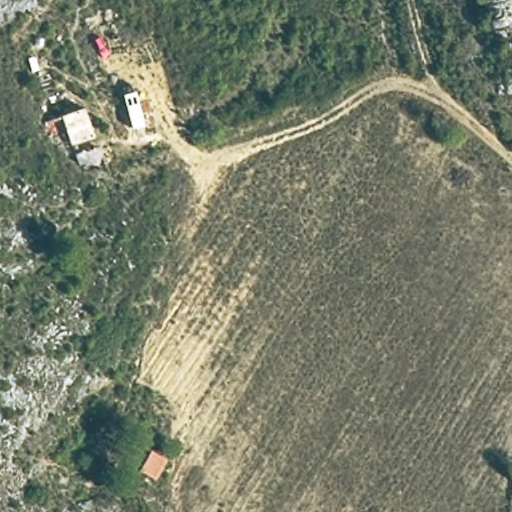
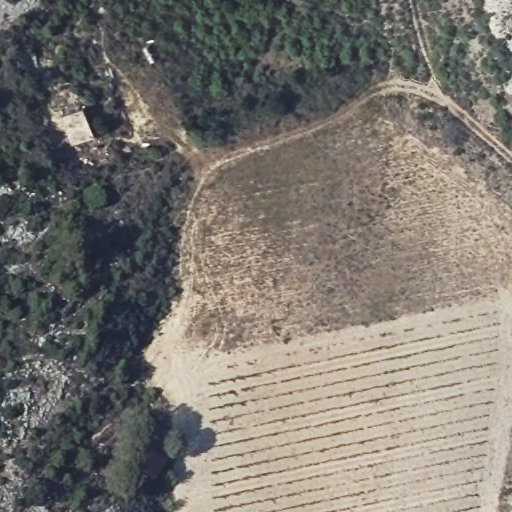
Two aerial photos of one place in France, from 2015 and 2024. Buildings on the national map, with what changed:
unchanged [(67,146),(54,110),(81,100),(94,136),(67,146)]
unchanged [(133,472),(144,448),(165,457),(154,481),(133,472)]

